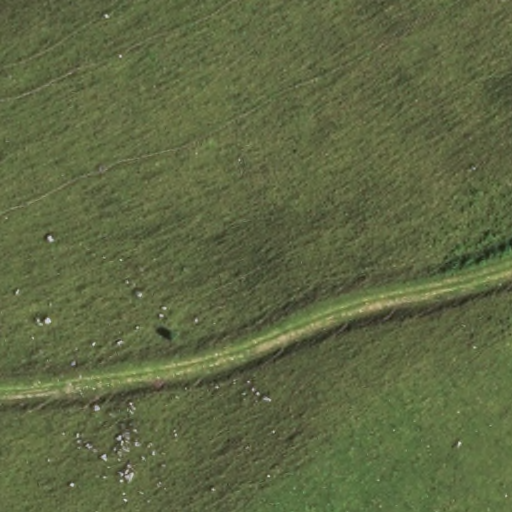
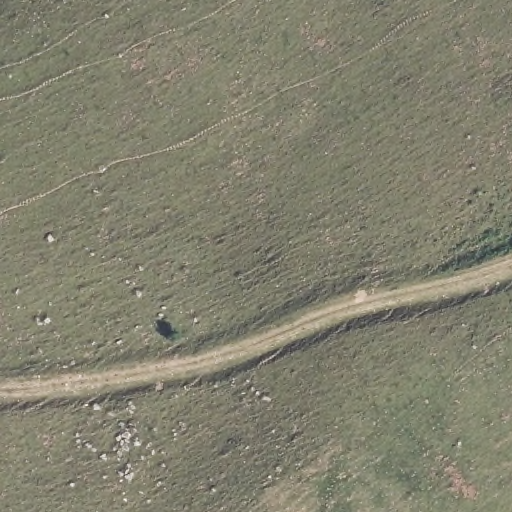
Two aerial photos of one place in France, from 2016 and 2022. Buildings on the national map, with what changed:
[]

